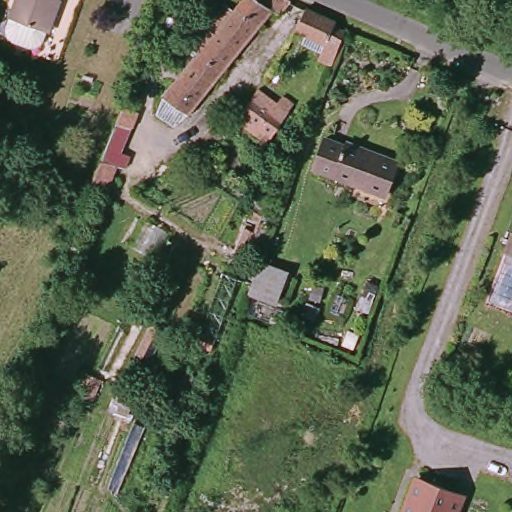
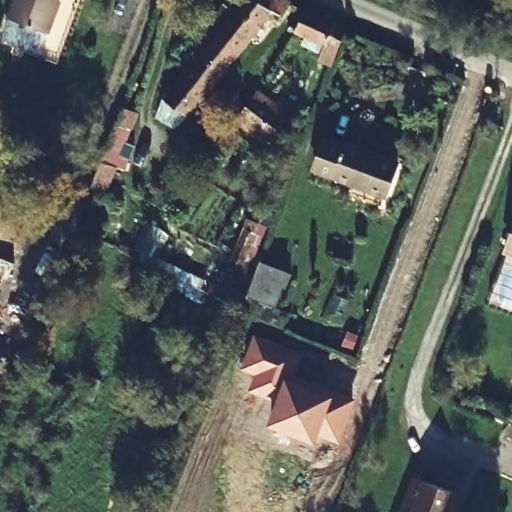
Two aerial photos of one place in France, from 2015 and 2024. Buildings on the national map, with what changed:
unchanged [(47,36),(44,39),(41,42),(37,43),(32,44),(15,37),(13,34),(12,31),(10,26),(11,22),(19,0),(60,0),(47,36)]
unchanged [(283,11),(273,24),(267,20),(182,123),(160,107),(198,59),(190,52),(220,14),(228,21),(244,0),(262,0),(283,11)]
unchanged [(332,17),(330,22),(343,29),(330,59),(317,54),(322,42),(294,25),(305,4),(332,17)]
unchanged [(320,71),(300,118),(294,115),(315,69),(320,71)]
unchanged [(280,104),(273,116),(268,112),(253,135),(235,121),(258,89),(280,104)]
unchanged [(120,107),(135,112),(109,182),(106,190),(90,184),(114,122),(120,107)]
unchanged [(325,137),(346,145),(347,141),(398,160),(386,194),(314,167),(325,137)]
unchanged [(168,234),(154,259),(133,247),(147,222),(168,234)]
unchanged [(242,223),(252,227),(243,247),(233,242),(242,223)]
unchanged [(510,303),(488,295),(507,245),(506,245),(512,229),(512,296),(510,303)]
new [(0,305),(0,257),(16,263),(0,305)]
unchanged [(258,266),(260,262),(287,272),(275,302),(248,292),(258,266)]
new [(297,375),(357,397),(340,441),(320,431),(317,442),(268,424),(278,400),(250,390),(257,375),(242,367),(255,333),(306,352),(297,375)]
unchanged [(460,492),(453,512),(401,512),(415,475),(460,492)]

